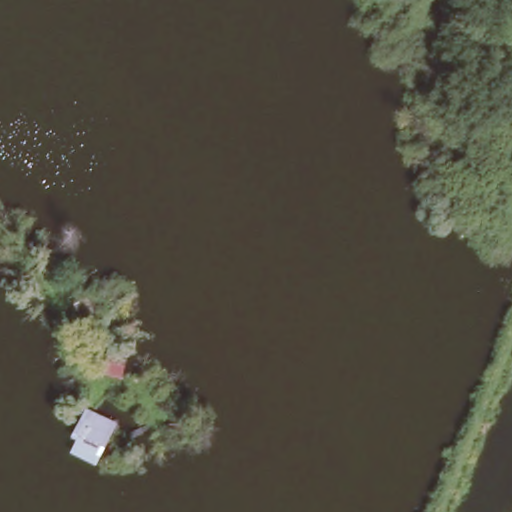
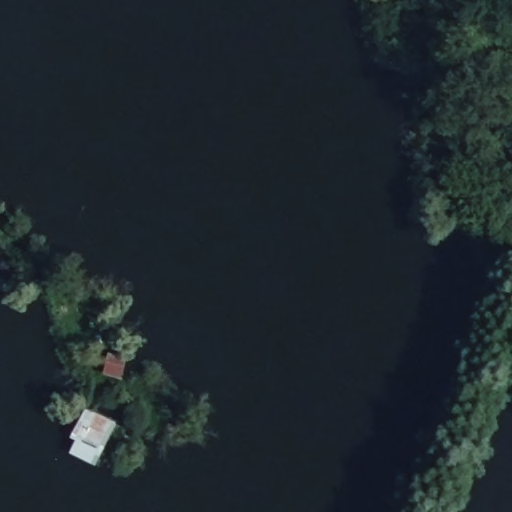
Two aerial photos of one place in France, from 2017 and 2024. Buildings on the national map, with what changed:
unchanged [(118,424),(93,464),(72,454),(80,442),(72,438),(90,410),(118,424)]

